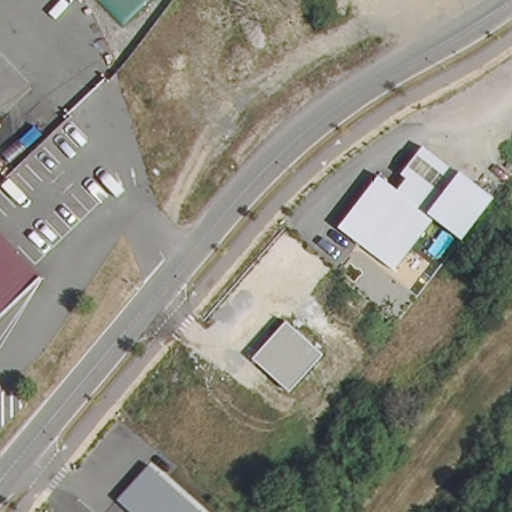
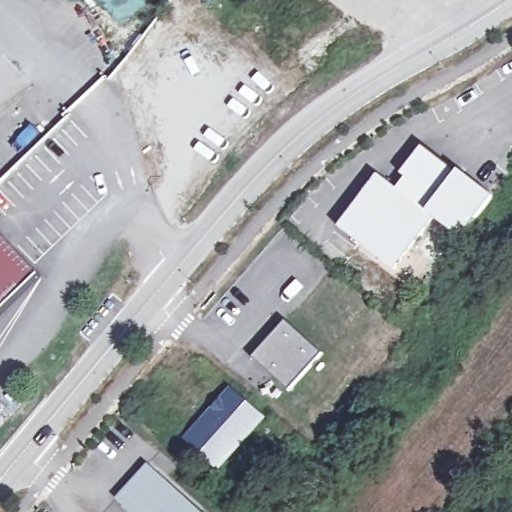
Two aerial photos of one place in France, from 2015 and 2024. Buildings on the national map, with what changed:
unchanged [(406,178),(401,175),(422,146),(458,174),(460,171),(496,199),(464,241),(435,217),(398,188),(406,178)]
unchanged [(381,174),(435,217),(393,273),(337,226),(381,174)]
unchanged [(38,276),(0,312),(0,234),(38,276)]
unchanged [(288,320),(324,354),(290,392),(253,360),(288,320)]
new [(230,385),(267,418),(218,472),(182,440),(230,385)]
unchanged [(150,465),(203,512),(129,512),(117,501),(150,465)]

